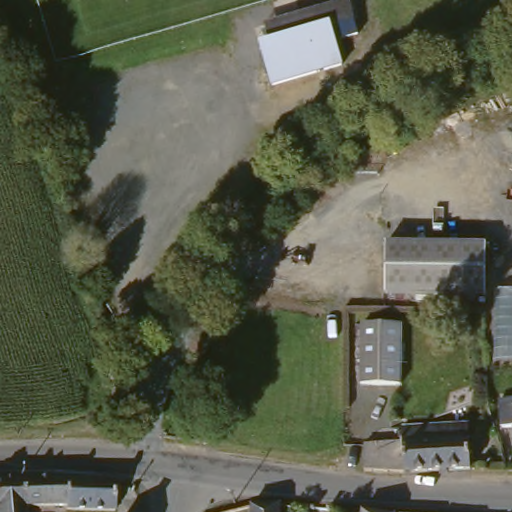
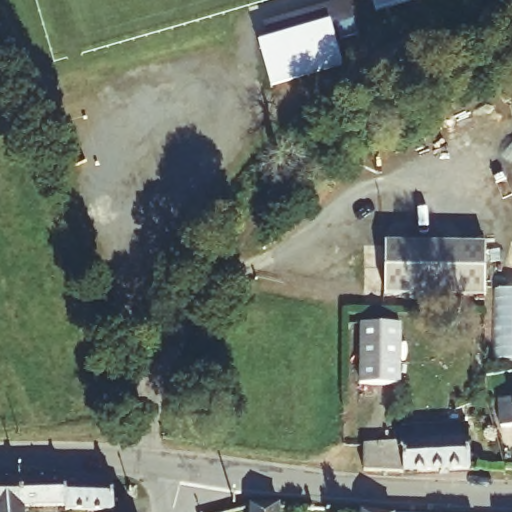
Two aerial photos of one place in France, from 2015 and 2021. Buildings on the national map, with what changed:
unchanged [(271,88),(255,40),(267,37),(263,25),(346,2),(353,26),(333,33),(345,68),(271,88)]
unchanged [(383,241),(483,242),(484,294),(383,293),(383,241)]
unchanged [(396,328),(396,361),(396,388),(356,388),(356,361),(356,328),(396,328)]
unchanged [(498,427),(498,410),(512,409),(512,426),(498,427)]
unchanged [(468,464),(373,471),(368,470),(366,470),(366,460),(366,448),(368,448),(405,445),(405,427),(440,425),(466,423),(467,435),(468,464)]
unchanged [(118,503),(66,505),(65,472),(116,471),(118,503)]
unchanged [(65,472),(66,505),(63,505),(51,505),(51,510),(30,510),(30,505),(22,505),(22,512),(0,512),(0,475),(21,473),(65,472)]
unchanged [(253,512),(253,505),(281,505),(281,512),(253,512)]
unchanged [(361,512),(355,512),(356,511),(361,512)]

